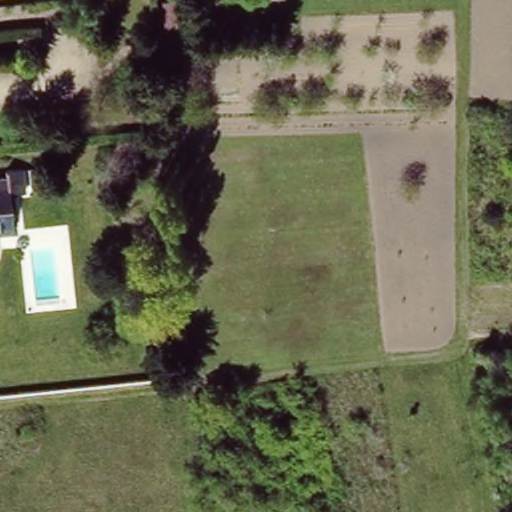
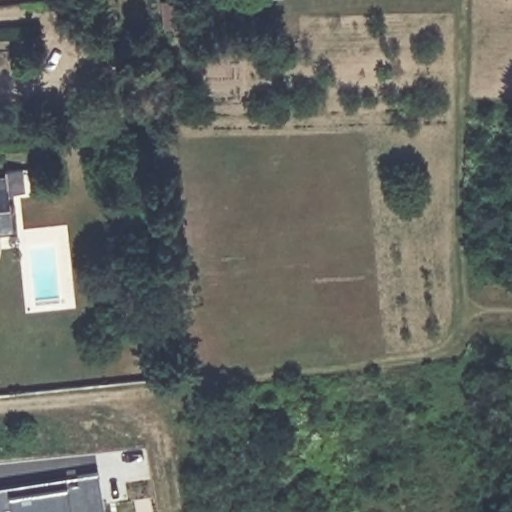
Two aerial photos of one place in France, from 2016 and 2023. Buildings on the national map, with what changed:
unchanged [(5,170),(22,167),(22,178),(24,193),(8,195),(12,231),(0,232),(0,177),(5,176),(5,170)]
new [(0,512),(0,493),(15,491),(14,484),(66,477),(67,482),(81,480),(80,472),(100,469),(107,512),(0,512)]

